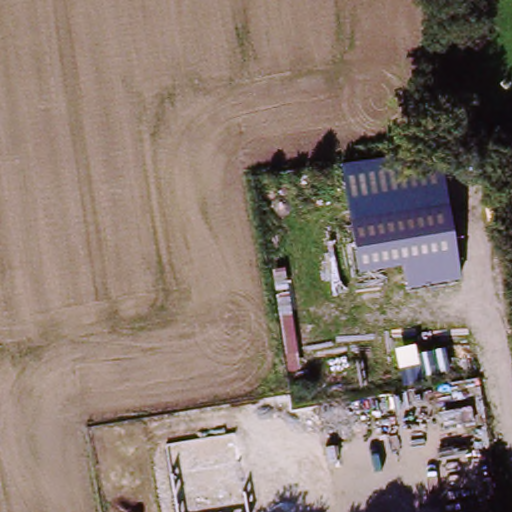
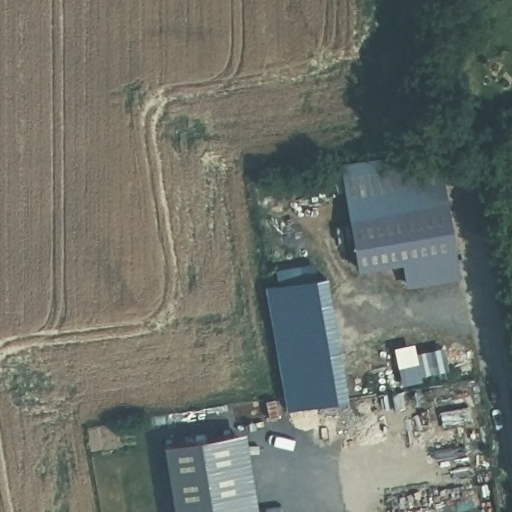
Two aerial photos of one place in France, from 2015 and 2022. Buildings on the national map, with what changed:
unchanged [(349,269),(342,219),(339,168),(432,161),(441,206),(451,281),(402,287),(400,263),(349,269)]
new [(331,280),(355,402),(295,414),(272,291),(331,280)]
new [(250,512),(178,512),(167,449),(237,437),(250,512)]

